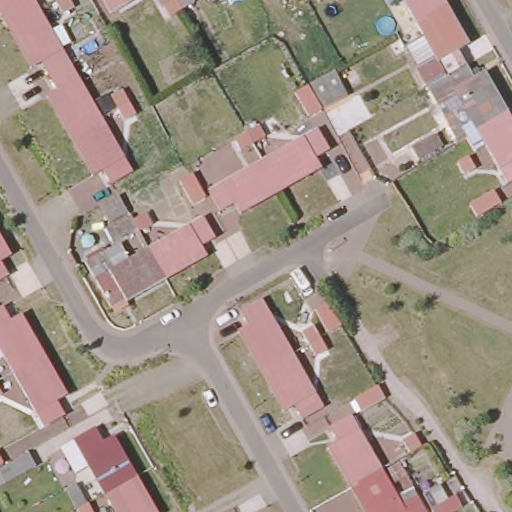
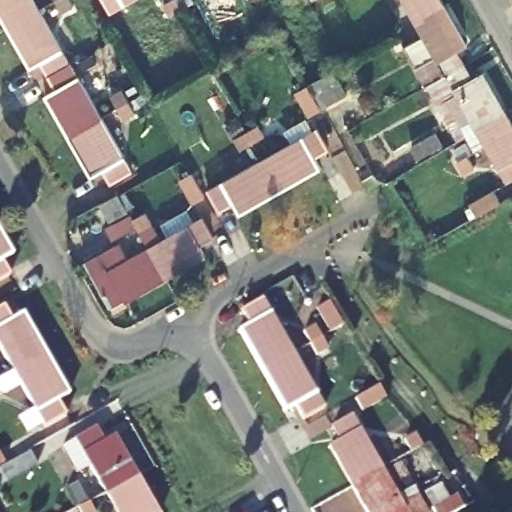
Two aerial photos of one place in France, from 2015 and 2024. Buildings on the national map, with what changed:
unchanged [(11,22),(0,2),(0,0),(36,0),(39,6),(11,22)]
unchanged [(112,11),(106,0),(132,0),(112,11)]
unchanged [(321,4),(319,0),(329,0),(321,4)]
unchanged [(432,79),(428,81),(427,82),(417,64),(437,53),(425,33),(423,30),(416,17),(406,0),(445,0),(469,42),(460,48),(466,60),(447,71),(432,79)]
unchanged [(39,6),(70,60),(51,70),(43,57),(34,62),(11,22),(39,6)]
unchanged [(70,60),(100,113),(72,129),(50,90),(59,84),(51,70),(70,60)]
unchanged [(432,79),(447,71),(466,60),(475,74),(483,69),(505,108),(490,116),(500,133),(486,140),(458,91),(440,101),(428,81),(432,79)]
unchanged [(311,83),(323,76),(335,70),(347,94),(336,100),(323,107),(310,83),(311,83)]
unchanged [(490,116),(505,108),(512,119),(512,176),(508,178),(486,140),(500,133),(490,116)]
unchanged [(100,113),(131,168),(113,178),(105,163),(95,169),(72,129),(100,113)]
unchanged [(260,161),(312,131),(323,150),(310,158),(315,166),(275,188),(260,161)]
unchanged [(275,188),(236,210),(232,202),(218,210),(208,191),(260,161),(275,188)]
unchanged [(193,189),(182,195),(170,173),(181,167),(193,189)]
unchanged [(113,194),(122,210),(105,219),(96,204),(113,194)]
unchanged [(132,227),(108,240),(101,227),(124,213),(132,227)]
unchanged [(145,251),(198,221),(208,239),(195,247),(200,257),(161,279),(145,251)]
unchanged [(9,255),(1,259),(10,274),(0,280),(0,239),(9,255)]
unchanged [(161,279),(162,280),(122,303),(120,301),(108,308),(81,261),(115,241),(127,261),(145,251),(161,279)]
unchanged [(257,366),(235,327),(245,321),(238,310),(257,298),(286,349),(257,366)]
unchanged [(13,372),(0,348),(0,311),(3,308),(11,322),(21,317),(42,355),(13,372)]
unchanged [(286,349),(317,404),(298,415),(289,399),(280,405),(257,366),(286,349)]
unchanged [(42,355),(65,396),(56,401),(65,415),(45,427),(13,372),(42,355)]
unchanged [(350,481),(330,443),(340,438),(332,425),(351,414),(380,464),(350,481)]
unchanged [(105,493),(75,442),(95,430),(103,444),(111,439),(134,477),(105,493)]
unchanged [(36,465),(13,478),(6,465),(28,452),(36,465)]
unchanged [(406,512),(368,512),(350,481),(380,464),(406,512)]
unchanged [(134,477),(154,512),(116,512),(106,495),(105,493),(134,477)]
unchanged [(434,512),(431,507),(456,494),(463,507),(454,512),(434,512)]

